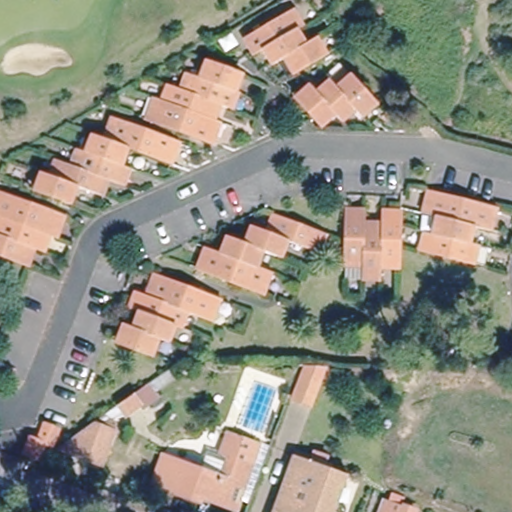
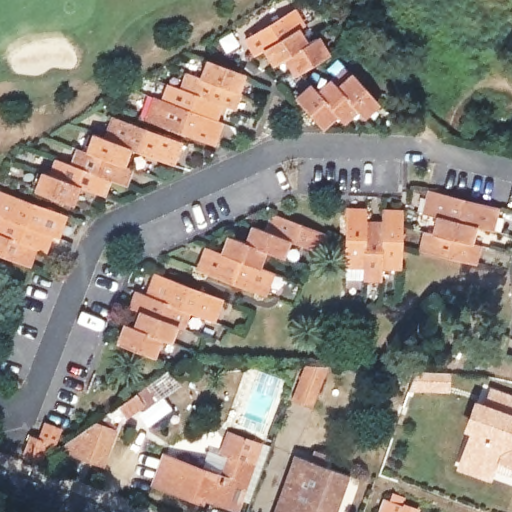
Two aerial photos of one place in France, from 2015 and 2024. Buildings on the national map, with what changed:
unchanged [(322,55),(290,74),(281,60),(270,66),(261,50),(252,56),(242,40),(291,11),(301,26),(294,31),(303,47),(313,41),(322,55)]
unchanged [(201,141),(174,131),(148,122),(140,119),(148,100),(155,102),(169,108),(176,91),(164,87),(170,70),(195,79),(202,62),(236,75),(231,92),(235,94),(229,110),(216,106),(210,122),(216,125),(208,144),(201,141)]
unchanged [(295,99),(309,87),(316,94),(329,83),(334,90),(348,78),(372,106),(358,118),(352,112),(340,122),(333,115),(319,126),(295,99)]
unchanged [(55,180),(61,164),(75,169),(81,152),(92,156),(97,141),(108,145),(115,125),(123,127),(149,137),(175,147),(183,149),(176,169),(168,166),(142,157),(133,154),(127,169),(134,171),(128,188),(114,182),(107,200),(80,189),(74,207),(37,194),(44,177),(55,180)]
unchanged [(27,204),(54,214),(61,216),(53,236),(47,234),(45,233),(39,250),(29,246),(22,263),(0,255),(0,194),(2,195),(27,204)]
unchanged [(423,254),(427,236),(437,237),(441,220),(431,217),(424,216),(428,197),(436,200),(461,206),(488,212),(495,214),(491,232),(485,231),(476,229),(472,246),(481,247),(477,266),(423,254)]
unchanged [(362,279),(362,266),(346,266),(347,210),(365,210),(364,222),(382,223),(382,210),(400,211),(399,267),(381,266),(381,280),(362,279)]
unchanged [(257,292),(231,283),(205,273),(198,271),(204,254),(211,257),(221,260),(228,242),(244,248),(250,232),(265,237),(272,219),(325,238),(317,256),(288,246),(281,262),(265,256),(257,273),(264,276),(271,278),(265,296),(257,292)]
unchanged [(121,323),(131,326),(137,309),(128,306),(134,288),(144,292),(150,274),(158,277),(183,286),(210,296),(217,298),(211,317),(203,314),(189,308),(183,326),(174,322),(167,340),(158,336),(151,352),(115,340),(121,323)]
unchanged [(322,372),(311,400),(296,394),(306,367),(322,372)]
unchanged [(156,382),(166,395),(149,407),(145,402),(132,411),(126,403),(156,382)]
new [(454,469),(467,433),(460,431),(472,400),(483,403),(490,387),(512,396),(512,468),(496,463),(491,481),(454,469)]
unchanged [(102,421),(119,427),(105,464),(63,449),(102,421)]
unchanged [(26,435),(34,437),(40,423),(54,428),(48,444),(40,441),(34,456),(21,451),(26,435)]
unchanged [(263,450),(241,512),(238,512),(207,502),(205,506),(159,489),(168,463),(204,476),(211,456),(223,461),(231,437),(263,450)]
unchanged [(333,512),(275,512),(294,457),(339,472),(346,475),(333,512)]
unchanged [(385,497),(404,505),(401,512),(380,512),(385,497)]

